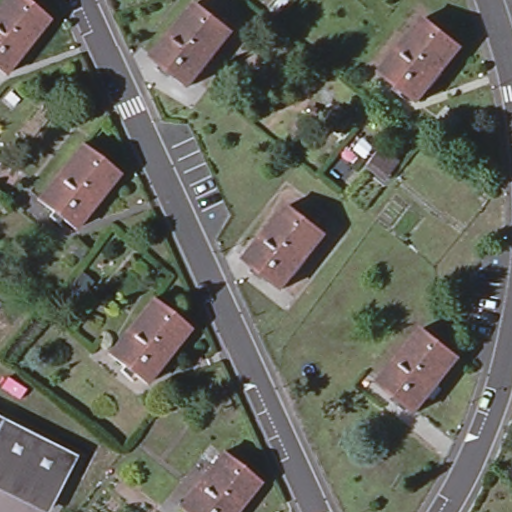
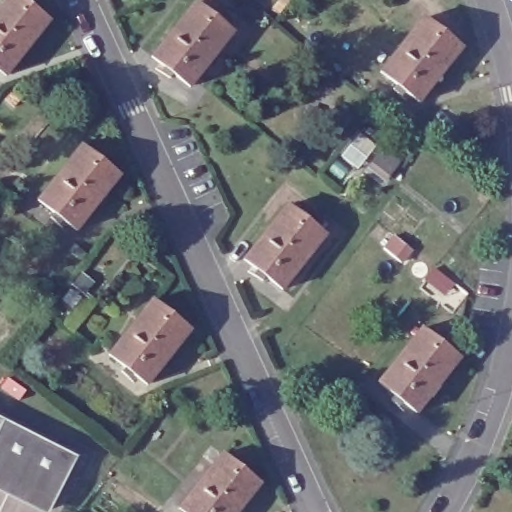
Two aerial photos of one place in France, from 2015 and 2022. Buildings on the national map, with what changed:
unchanged [(52,17),(10,70),(0,62),(0,9),(7,0),(32,0),(52,17)]
unchanged [(234,28),(192,82),(155,52),(195,0),(198,0),(234,28)]
unchanged [(458,47),(414,100),(378,69),(424,17),(458,47)]
unchanged [(119,175),(77,227),(40,198),(82,145),(119,175)]
unchanged [(325,231),(283,285),(247,256),(290,204),(325,231)]
unchanged [(190,326),(147,380),(110,351),(153,296),(190,326)]
unchanged [(459,356),(417,410),(380,381),(424,326),(459,356)]
unchanged [(50,503),(0,479),(0,418),(75,455),(50,503)]
unchanged [(235,512),(190,512),(180,505),(223,451),(260,480),(235,512)]

